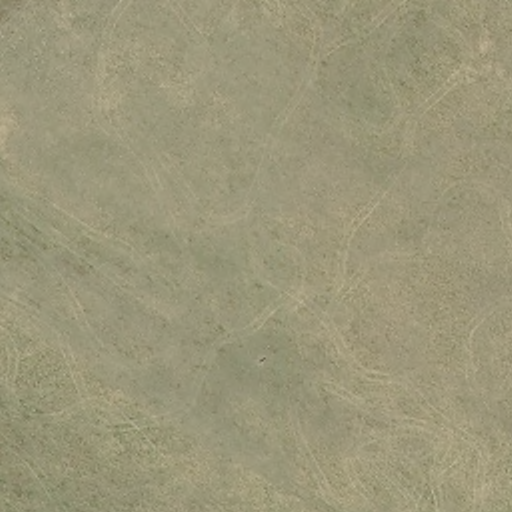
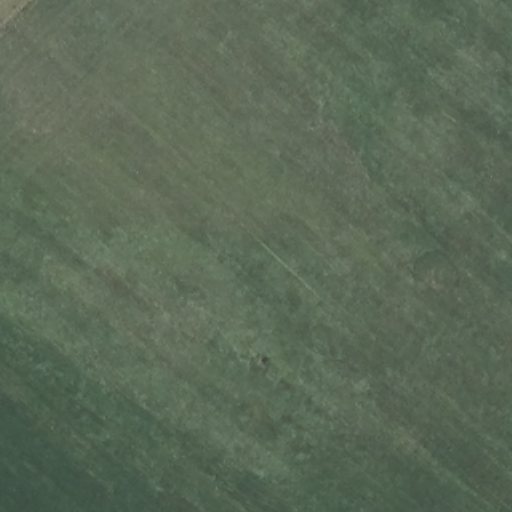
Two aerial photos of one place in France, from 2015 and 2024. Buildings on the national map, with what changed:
[]

